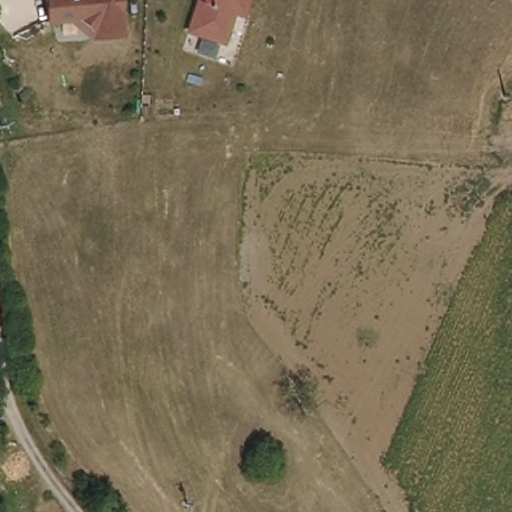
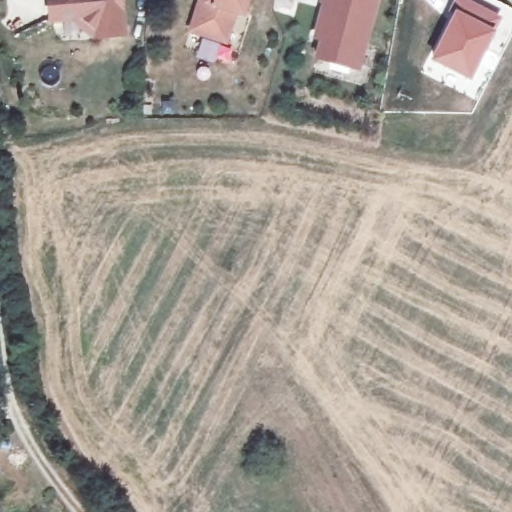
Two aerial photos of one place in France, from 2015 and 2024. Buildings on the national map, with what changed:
unchanged [(90,35),(90,20),(30,27),(28,0),(119,0),(121,33),(90,35)]
unchanged [(240,17),(230,46),(188,34),(199,0),(251,0),(246,19),(240,17)]
new [(379,0),(360,72),(314,60),(318,42),(313,41),(321,4),(318,3),(319,0),(379,0)]
new [(453,0),(471,0),(501,15),(469,80),(427,59),(445,22),(453,0)]

